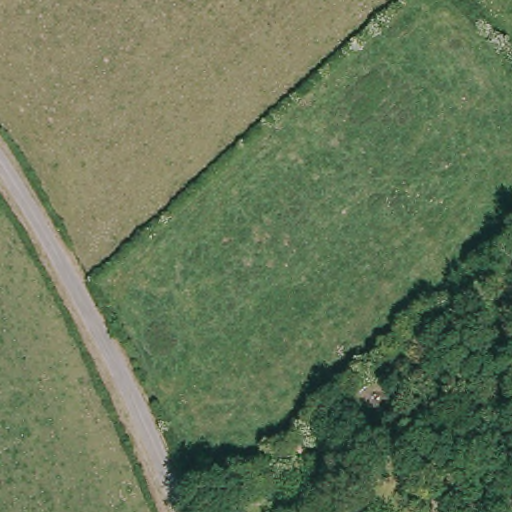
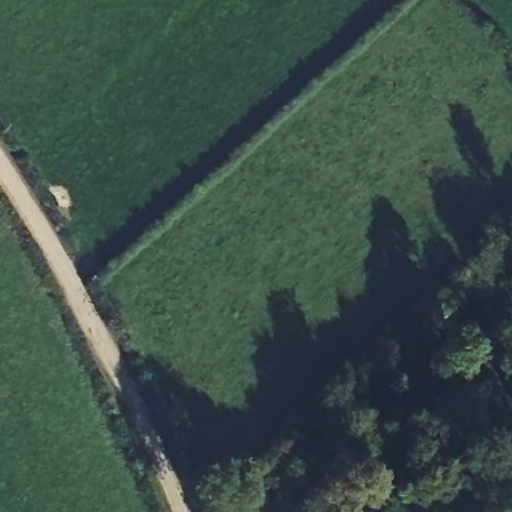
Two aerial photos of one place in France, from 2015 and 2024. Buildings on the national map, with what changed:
[]

